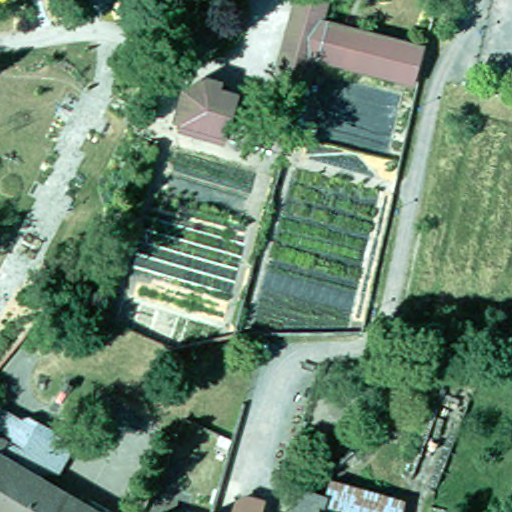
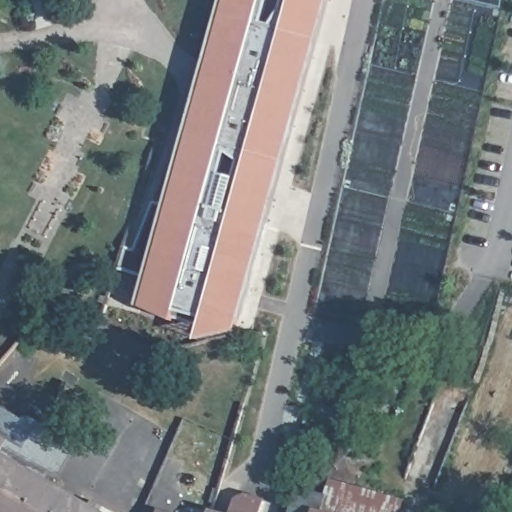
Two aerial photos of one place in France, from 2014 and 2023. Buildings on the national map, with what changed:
new [(148,277),(168,205),(225,0),(329,0),(238,331),(198,342),(201,329),(174,322),(141,306),(148,277)]
demolished [(219,130),(217,138),(174,125),(184,90),(199,82),(230,91),(228,100),(271,114),(283,80),(270,75),(292,0),(331,0),(331,1),(329,10),(316,54),(309,52),(280,147),(219,130)]
demolished [(423,27),(408,83),(316,54),(329,10),(331,1),(331,0),(336,0),(423,27)]
new [(502,9),(463,0),(503,0),(502,9)]
new [(125,247),(134,249),(153,201),(168,205),(148,277),(119,268),(125,247)]
unchanged [(72,447),(51,489),(23,472),(1,460),(6,450),(0,446),(0,410),(1,407),(72,447)]
unchanged [(6,450),(1,460),(23,472),(1,512),(0,512),(0,446),(6,450)]
unchanged [(51,489),(89,510),(93,503),(108,512),(1,512),(23,472),(51,489)]
unchanged [(321,495),(326,474),(404,496),(400,512),(287,512),(294,486),(321,495)]
unchanged [(262,499),(258,512),(227,512),(232,491),(262,499)]

